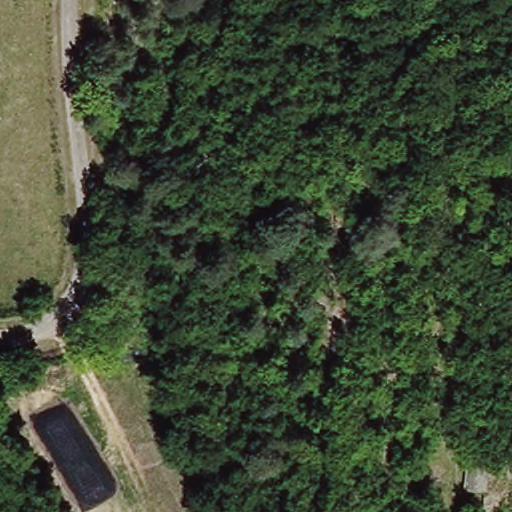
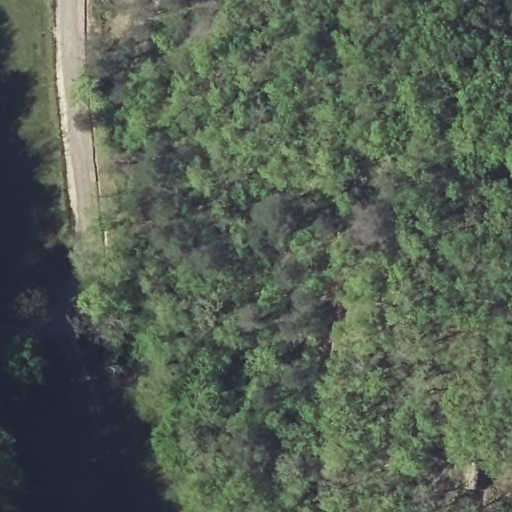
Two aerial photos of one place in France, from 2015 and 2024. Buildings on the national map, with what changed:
unchanged [(487,477),(465,479),(465,452),(487,450),(487,477)]

